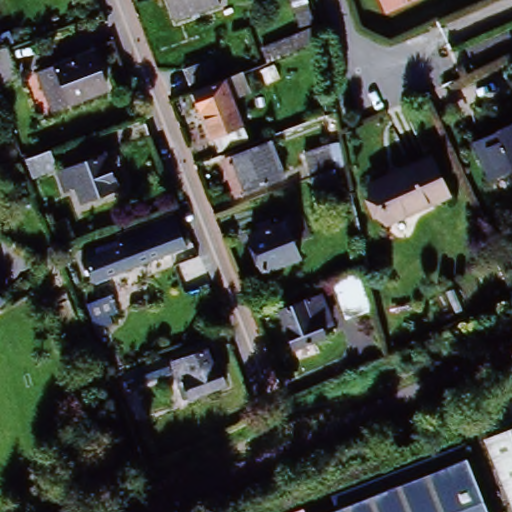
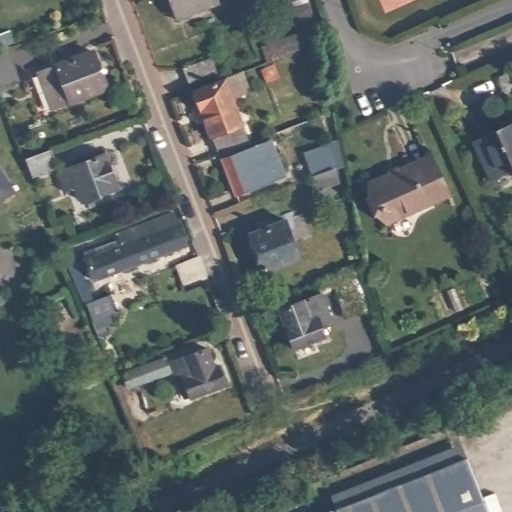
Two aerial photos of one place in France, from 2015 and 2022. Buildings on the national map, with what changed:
unchanged [(170,0),(210,0),(174,13),(170,0)]
unchanged [(302,26),(293,0),(307,0),(314,22),(302,26)]
unchanged [(269,62),(264,48),(302,33),(308,47),(269,62)]
unchanged [(0,86),(0,49),(6,46),(19,78),(0,86)]
unchanged [(52,109),(38,71),(93,52),(107,89),(52,109)]
unchanged [(191,84),(186,69),(212,60),(218,74),(191,84)]
unchanged [(225,79),(248,141),(218,153),(195,91),(225,79)]
unchanged [(224,164),(253,153),(253,151),(273,144),(287,178),(268,184),(237,196),(224,164)]
unchanged [(326,145),(336,169),(311,179),(303,154),(326,145)]
unchanged [(28,159),(51,150),(58,168),(34,175),(28,159)]
unchanged [(67,188),(61,170),(105,154),(118,189),(83,201),(77,185),(67,188)]
unchanged [(384,223),(369,184),(429,158),(446,197),(384,223)]
new [(15,192),(0,202),(0,169),(15,192)]
unchanged [(83,263),(119,249),(116,239),(168,219),(181,250),(126,270),(90,284),(83,263)]
unchanged [(251,238),(288,224),(302,261),(265,275),(251,238)]
unchanged [(374,314),(346,324),(332,279),(359,270),(374,314)]
unchanged [(86,304),(111,293),(118,309),(93,319),(86,304)]
unchanged [(4,303),(0,306),(0,298),(4,303)]
unchanged [(276,309),(306,299),(310,310),(327,304),(336,332),(320,338),(290,348),(276,309)]
unchanged [(186,386),(181,388),(171,363),(211,347),(225,384),(191,398),(186,386)]
unchanged [(129,409),(122,392),(116,377),(164,359),(169,373),(134,387),(141,404),(129,409)]
demolished [(512,424),(512,509),(481,438),(512,424)]
unchanged [(462,456),(484,512),(327,512),(331,511),(329,504),(326,494),(455,443),(462,456)]
unchanged [(299,506),(302,512),(284,512),(299,506)]

